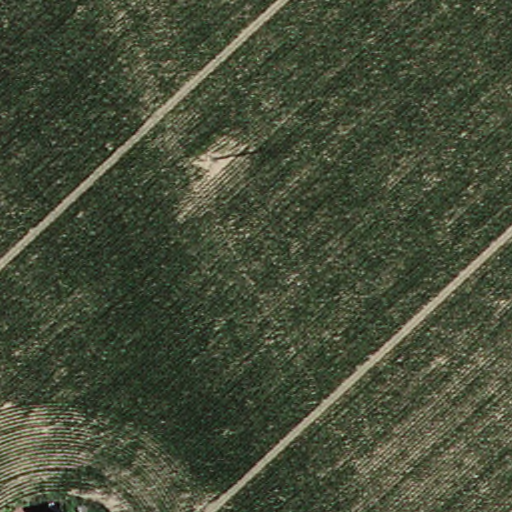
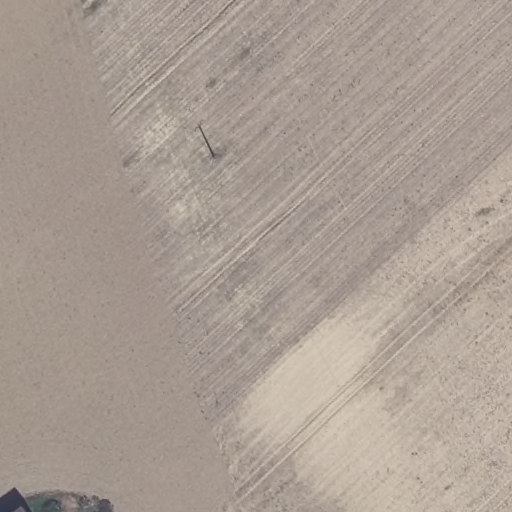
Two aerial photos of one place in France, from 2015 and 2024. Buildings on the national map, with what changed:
unchanged [(33,512),(28,512),(32,510),(33,512)]

